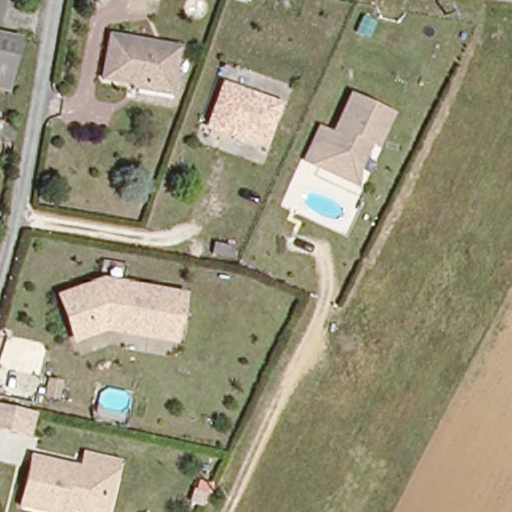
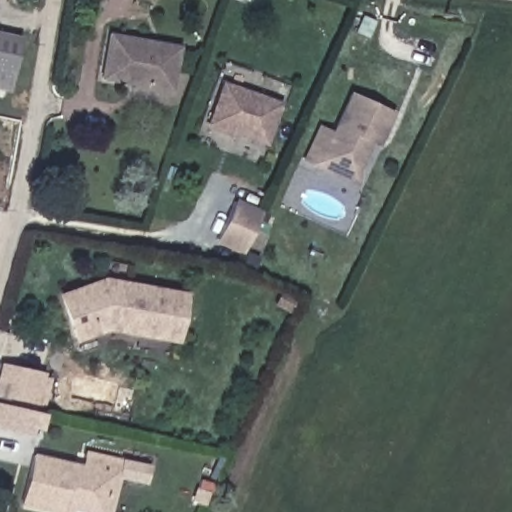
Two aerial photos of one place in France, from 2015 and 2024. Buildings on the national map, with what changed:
unchanged [(17,34),(8,83),(0,82),(0,30),(17,34)]
unchanged [(109,32),(181,46),(173,91),(100,77),(109,32)]
unchanged [(281,103),(267,144),(207,123),(222,82),(281,103)]
unchanged [(395,113),(380,150),(373,148),(364,169),(359,187),(304,162),(320,126),(333,131),(352,93),(395,113)]
new [(242,256),(215,244),(236,199),(262,211),(242,256)]
unchanged [(104,277),(188,292),(179,343),(106,331),(79,342),(60,293),(104,277)]
new [(1,393),(9,365),(47,375),(40,403),(1,393)]
unchanged [(40,412),(32,436),(0,428),(0,403),(40,412)]
unchanged [(125,461),(114,512),(76,512),(52,512),(27,505),(36,456),(84,466),(87,452),(125,461)]

